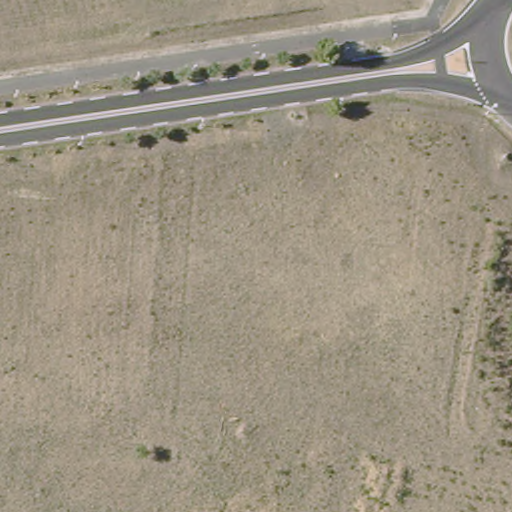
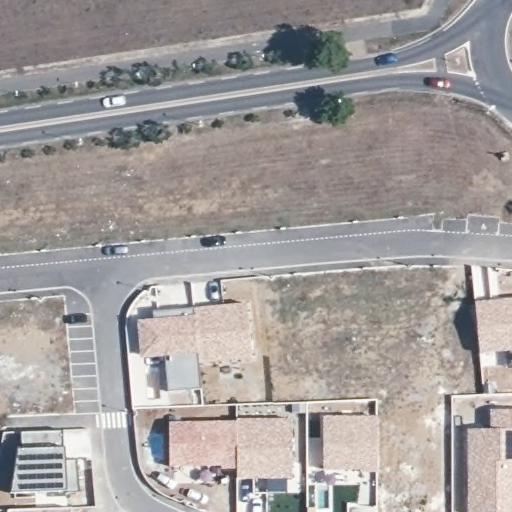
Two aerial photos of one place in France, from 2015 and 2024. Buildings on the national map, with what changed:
new [(512,297),(512,352),(496,353),(478,354),(474,298),(486,298),(512,297)]
new [(153,319),(153,312),(246,304),(251,358),(200,362),(199,353),(162,358),(141,358),(137,321),(153,319)]
new [(199,353),(201,365),(202,390),(196,391),(166,393),(162,358),(199,353)]
new [(489,410),(512,410),(512,512),(468,512),(468,429),(491,429),(489,410)]
new [(378,415),(378,471),(322,470),(321,415),(378,415)]
new [(236,418),(236,469),(168,466),(168,421),(236,418)]
new [(236,418),(292,418),(294,479),(236,479),(236,469),(236,418)]
new [(23,449),(21,433),(63,431),(63,448),(65,448),(66,461),(76,460),(79,491),(67,491),(11,493),(18,450),(23,449)]
new [(70,506),(70,512),(5,512),(5,508),(70,506)]

